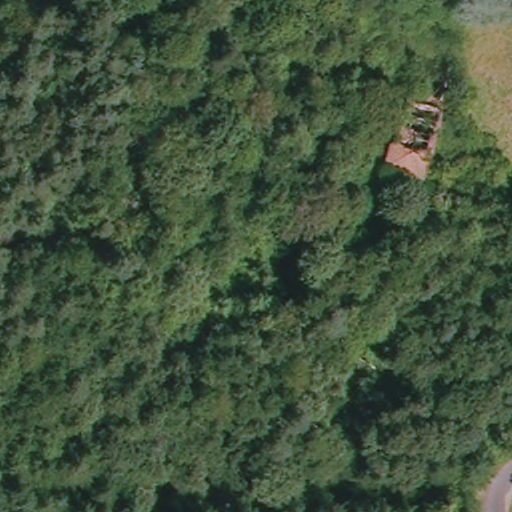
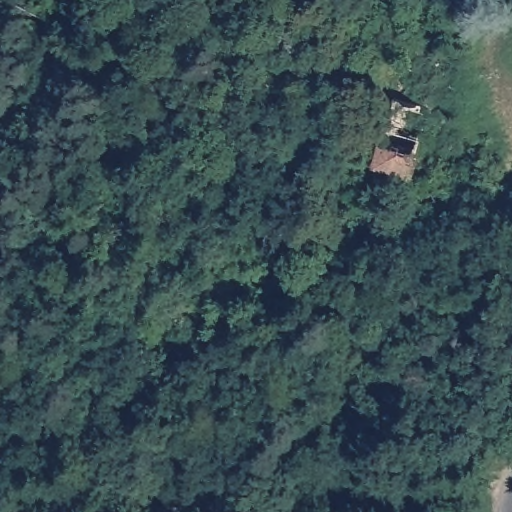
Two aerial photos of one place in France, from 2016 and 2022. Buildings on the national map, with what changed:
unchanged [(408,180),(369,170),(379,129),(419,136),(408,180)]

